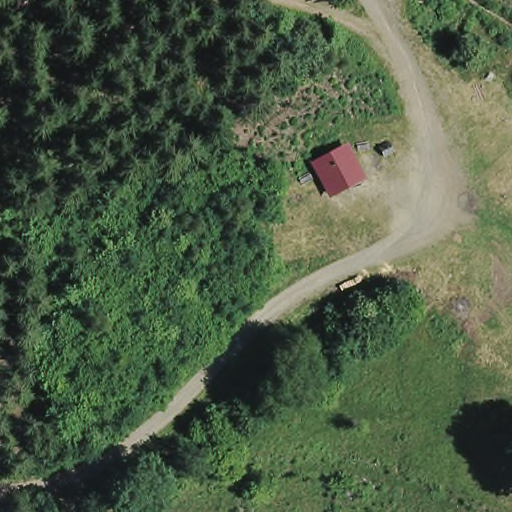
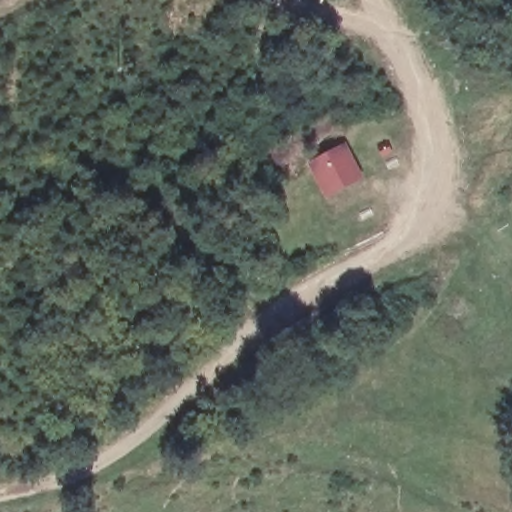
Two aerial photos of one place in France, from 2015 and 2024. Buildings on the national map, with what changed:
unchanged [(364,185),(323,202),(307,163),(345,149),(364,185)]

